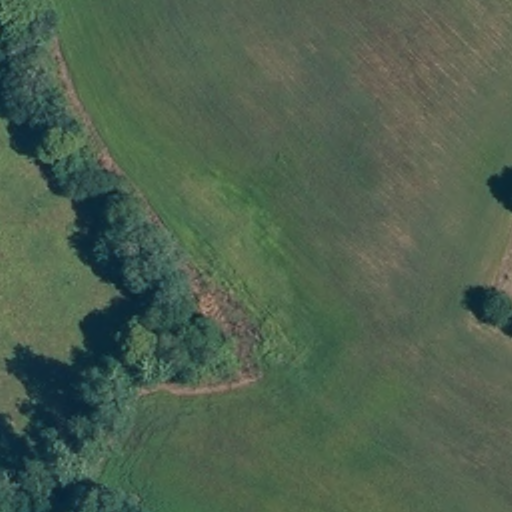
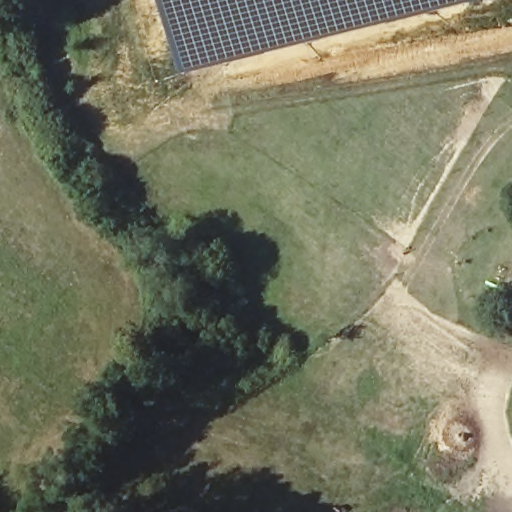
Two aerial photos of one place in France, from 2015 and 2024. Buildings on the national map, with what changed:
new [(163,0),(476,0),(182,74),(163,0)]

